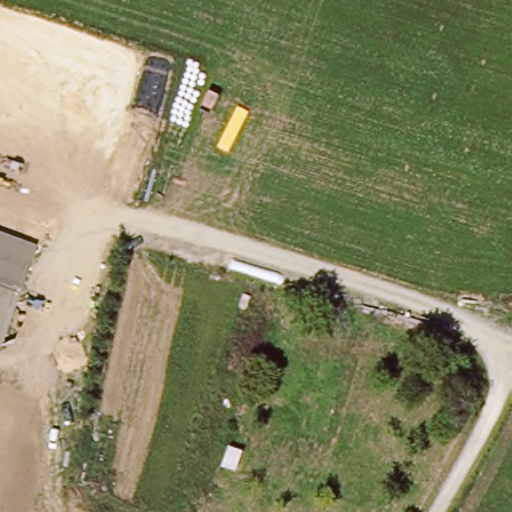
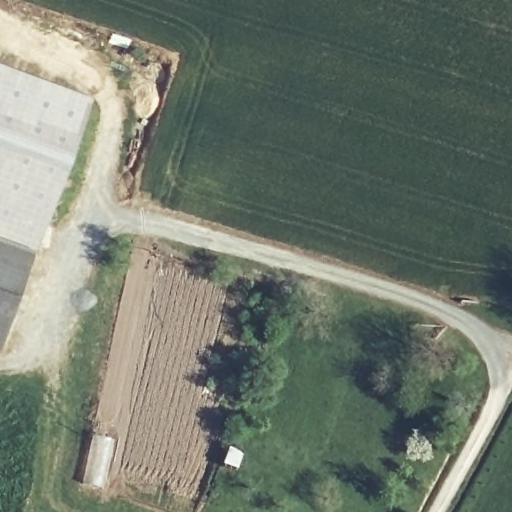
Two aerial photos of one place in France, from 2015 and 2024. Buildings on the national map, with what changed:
new [(35,250),(27,265),(0,255),(0,64),(92,97),(35,250)]
unchanged [(0,342),(0,255),(27,265),(0,342)]

